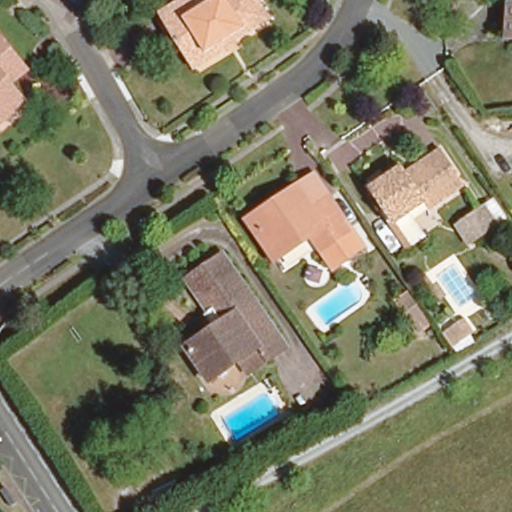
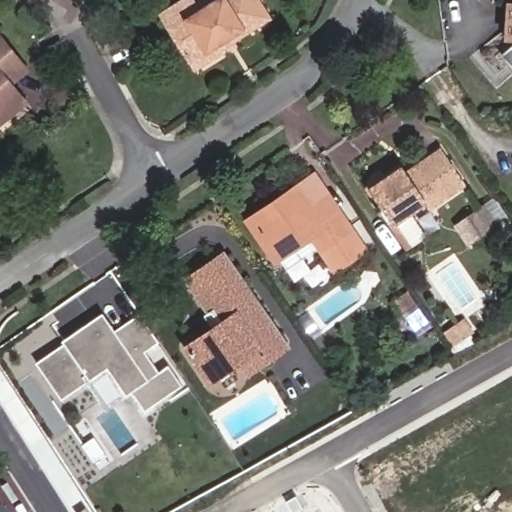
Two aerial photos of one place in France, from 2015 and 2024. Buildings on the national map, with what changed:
unchanged [(185,0),(196,0),(204,12),(224,0),(258,0),(273,23),(226,51),(229,55),(198,73),(161,13),(185,0)]
unchanged [(512,22),(512,35),(511,35),(512,22)]
unchanged [(22,69),(7,81),(24,103),(0,124),(0,45),(22,69)]
unchanged [(407,169),(410,174),(444,152),(468,190),(434,211),(430,206),(412,219),(425,239),(414,246),(400,226),(376,190),(407,169)]
unchanged [(277,258),(254,223),(251,217),(278,199),(298,187),(314,176),(329,199),(349,230),(335,241),(319,252),(309,237),(277,258)]
unchanged [(480,213),(492,232),(473,243),(460,225),(480,213)]
unchanged [(282,348),(266,359),(256,344),(207,378),(185,345),(220,320),(212,307),(206,312),(186,278),(218,255),(282,348)]
unchanged [(418,302),(426,314),(418,319),(418,318),(411,306),(418,302)]
new [(64,343),(62,340),(102,313),(115,330),(139,313),(159,342),(146,351),(158,372),(168,365),(182,385),(143,416),(128,395),(106,410),(88,384),(62,400),(36,362),(64,343)]
unchanged [(459,327),(469,341),(460,347),(450,334),(459,327)]

